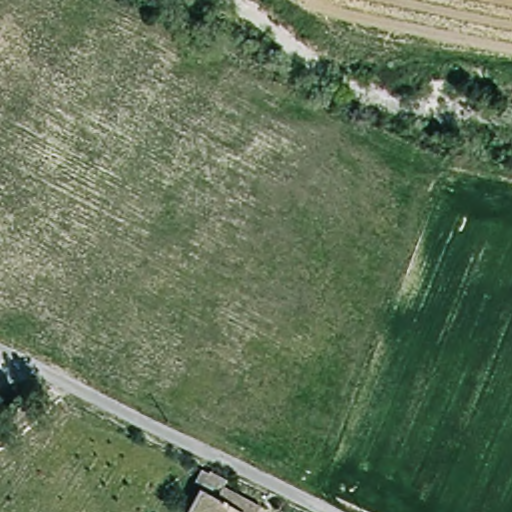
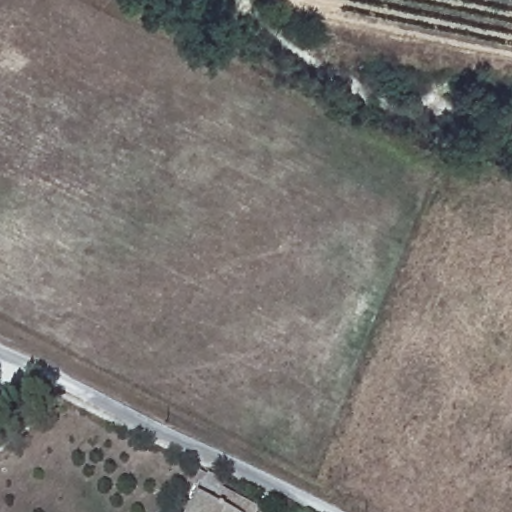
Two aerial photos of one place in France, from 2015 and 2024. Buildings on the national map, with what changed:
unchanged [(192,494),(204,473),(218,481),(225,485),(222,490),(261,510),(259,512),(194,512),(201,499),(192,494)]

